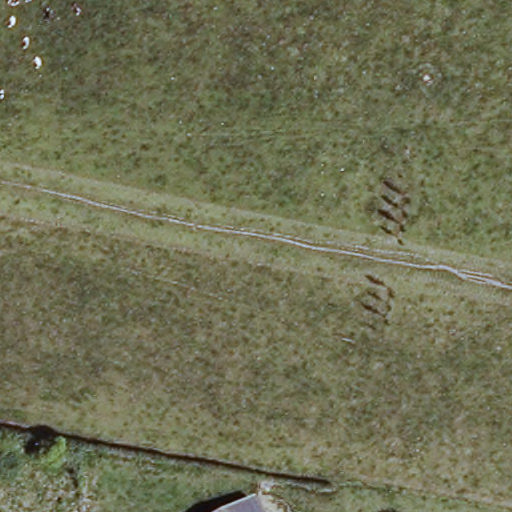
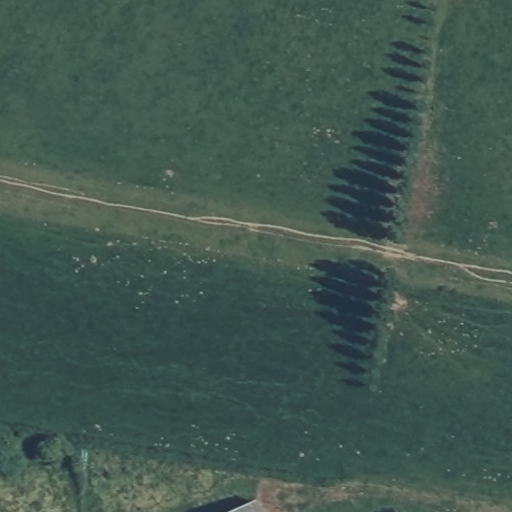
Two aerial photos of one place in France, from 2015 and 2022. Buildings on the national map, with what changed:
unchanged [(258,509),(260,512),(250,512),(258,509)]

